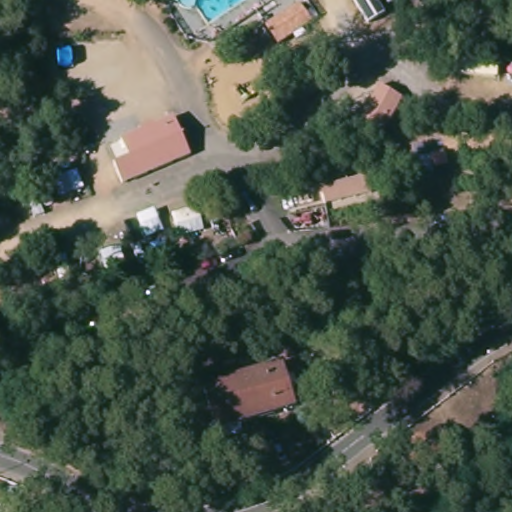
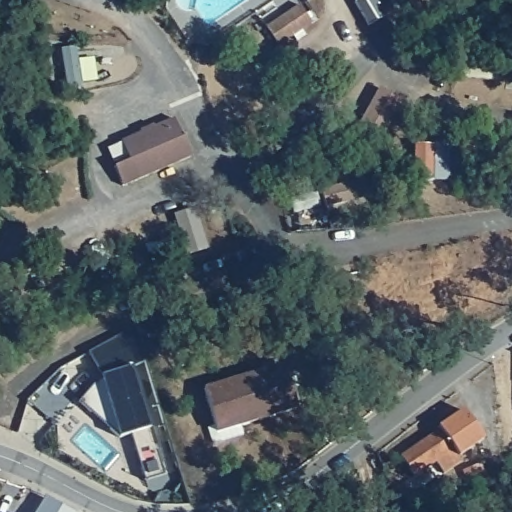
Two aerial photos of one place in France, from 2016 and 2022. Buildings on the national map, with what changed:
demolished [(246,21),(260,5),(265,0),(283,0),(290,6),(263,36),(246,21)]
unchanged [(376,85),(400,97),(385,124),(388,126),(385,135),(358,121),(376,85)]
unchanged [(113,169),(127,163),(120,145),(140,136),(137,132),(150,126),(152,130),(171,121),(188,159),(121,189),(113,169)]
unchanged [(320,188),(366,177),(369,192),(324,205),(320,188)]
unchanged [(15,207),(0,209),(0,200),(14,198),(15,207)]
new [(101,375),(90,352),(136,326),(146,360),(132,367),(163,474),(144,480),(130,433),(119,437),(78,400),(101,375)]
unchanged [(212,430),(199,388),(275,366),(290,409),(213,432),(212,430)]
new [(438,427),(463,408),(485,438),(458,457),(444,468),(437,461),(414,477),(400,456),(438,427)]
demolished [(463,460),(447,472),(441,463),(420,477),(406,460),(445,433),(463,460)]

